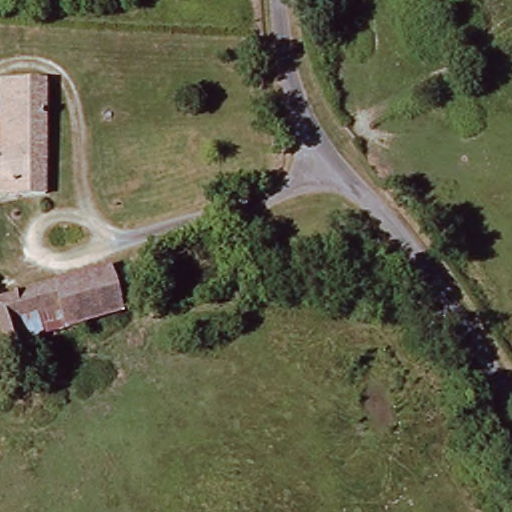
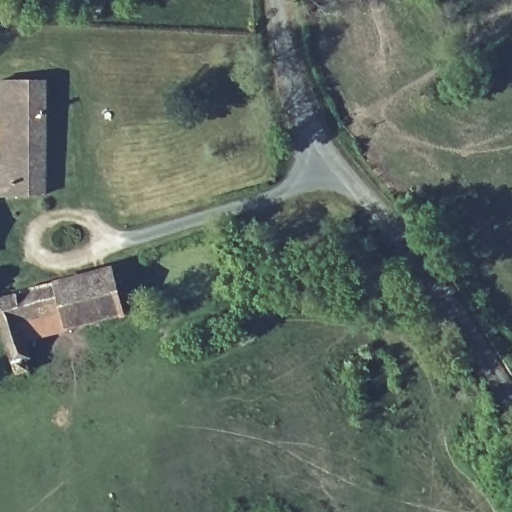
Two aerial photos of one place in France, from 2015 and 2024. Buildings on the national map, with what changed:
unchanged [(0,161),(14,161),(14,82),(41,83),(41,202),(0,201),(0,161)]
unchanged [(65,332),(58,310),(52,286),(108,271),(121,319),(65,332)]
unchanged [(38,332),(19,337),(24,356),(19,357),(21,368),(9,371),(0,333),(0,298),(52,286),(58,310),(34,316),(38,332)]

